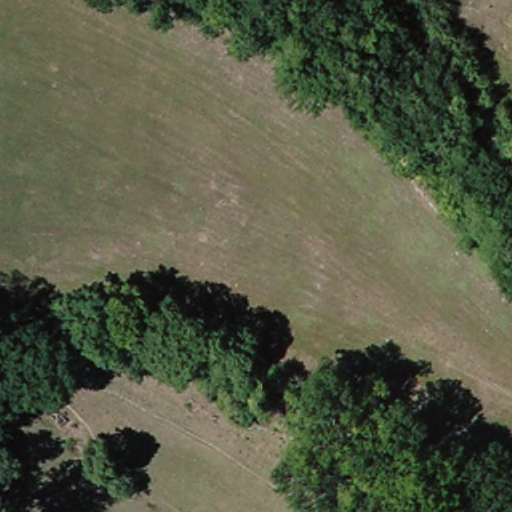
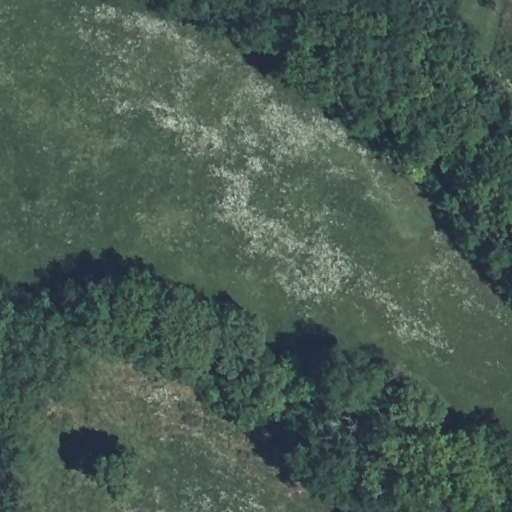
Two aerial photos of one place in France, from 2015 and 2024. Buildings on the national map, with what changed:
[]

